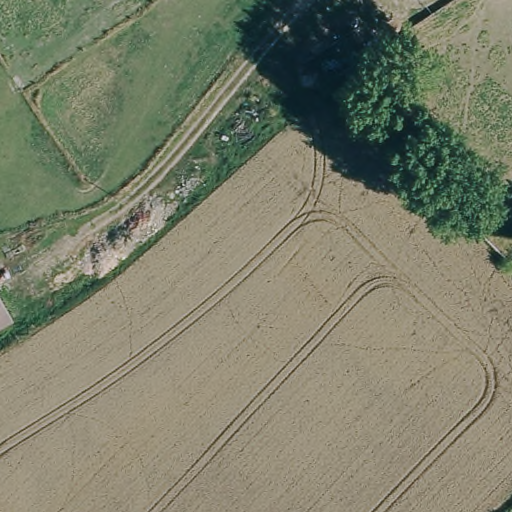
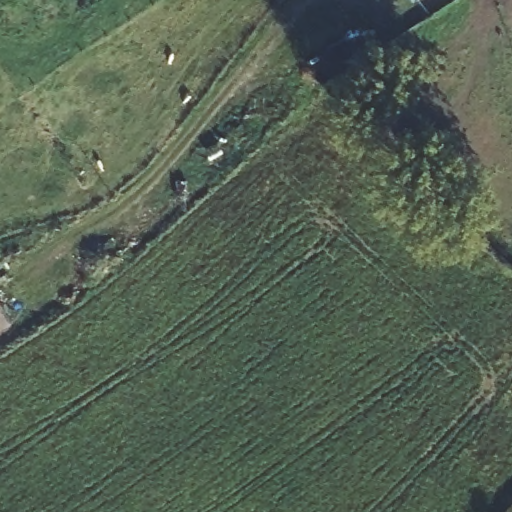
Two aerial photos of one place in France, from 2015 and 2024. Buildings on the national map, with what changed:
unchanged [(0,328),(0,293),(15,320),(0,328)]

